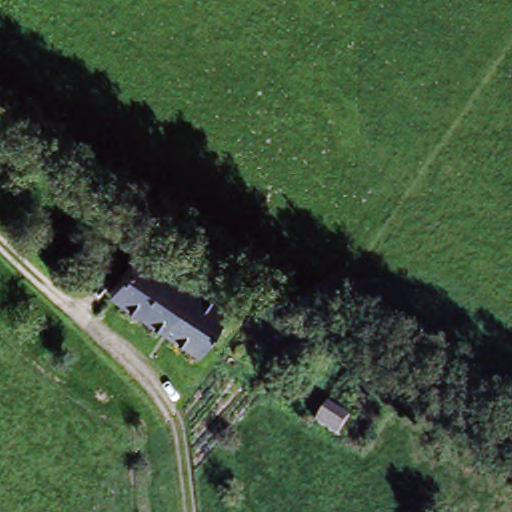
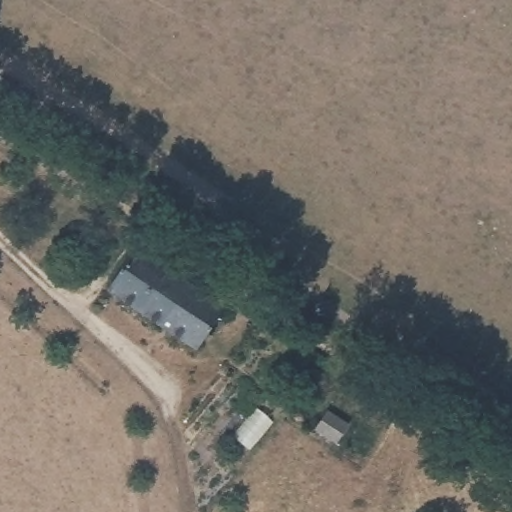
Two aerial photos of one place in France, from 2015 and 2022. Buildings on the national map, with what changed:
unchanged [(225,313),(187,355),(106,294),(140,250),(225,313)]
unchanged [(351,429),(338,448),(315,433),(330,415),(351,429)]

